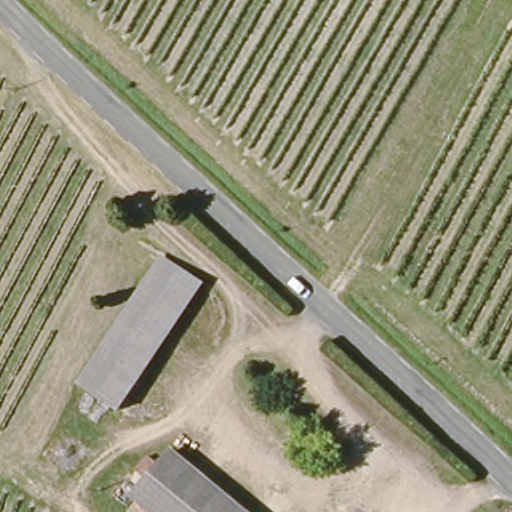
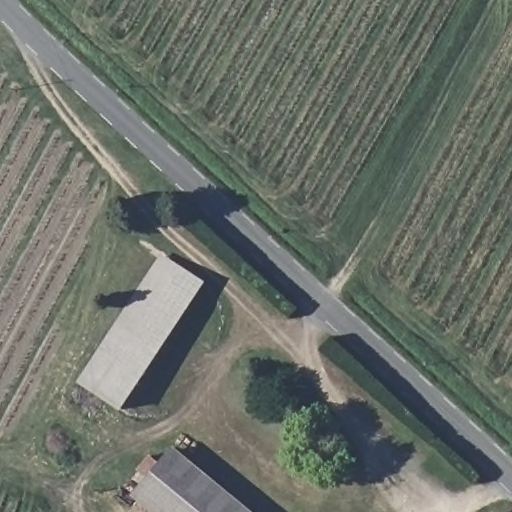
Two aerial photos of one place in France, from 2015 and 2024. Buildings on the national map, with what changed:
unchanged [(91,391),(78,382),(162,252),(177,261),(91,391)]
unchanged [(201,279),(116,408),(91,391),(177,261),(201,279)]
unchanged [(137,512),(143,505),(136,500),(148,485),(137,475),(149,459),(161,469),(174,451),(248,512),(137,512)]
unchanged [(510,512),(512,511),(512,512),(510,512)]

